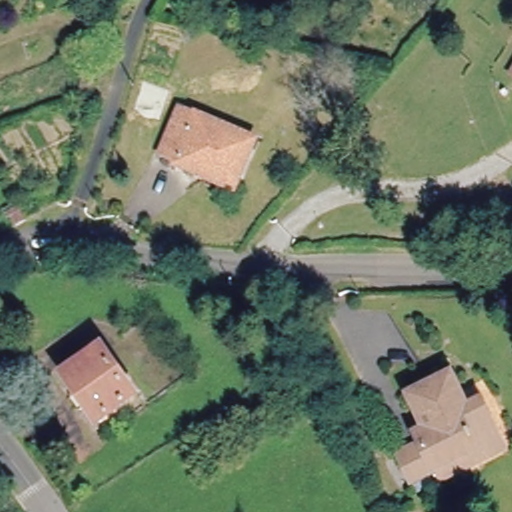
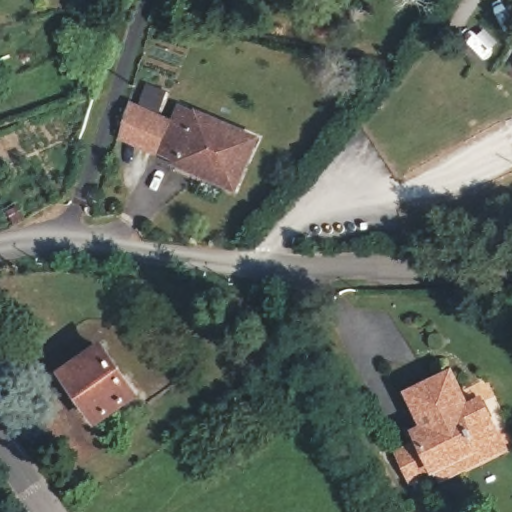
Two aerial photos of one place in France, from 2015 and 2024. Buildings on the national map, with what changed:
unchanged [(508,80),(512,71),(512,82),(508,80)]
new [(159,154),(156,158),(119,139),(129,100),(139,105),(146,84),(166,93),(159,114),(174,121),(159,154)]
unchanged [(195,176),(173,165),(175,162),(159,154),(180,110),(251,143),(232,184),(229,192),(195,176)]
unchanged [(11,231),(7,219),(15,215),(20,226),(11,231)]
unchanged [(96,423),(65,377),(79,367),(76,358),(96,347),(131,401),(96,423)]
unchanged [(441,473),(435,463),(412,475),(396,447),(416,437),(411,425),(424,419),(409,389),(432,378),(448,368),(451,375),(466,400),(475,396),(496,431),(501,441),(441,473)]

